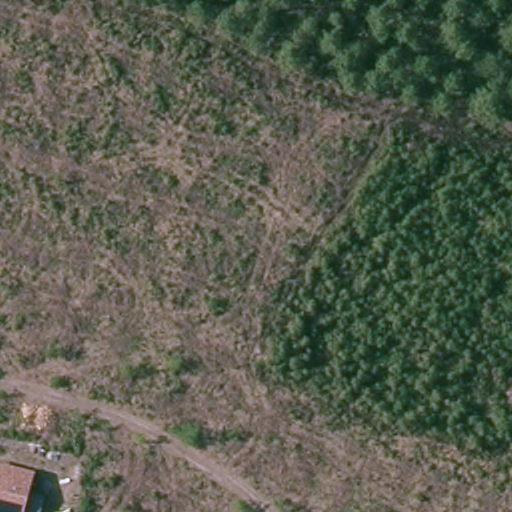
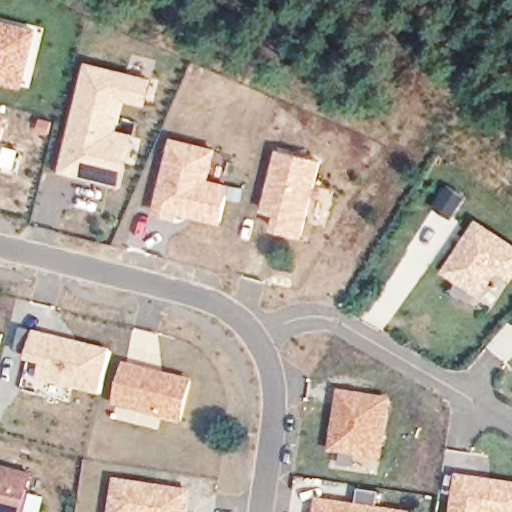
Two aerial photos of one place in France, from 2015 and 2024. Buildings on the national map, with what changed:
new [(39,28),(24,89),(0,83),(0,18),(39,28)]
new [(156,79),(149,105),(127,99),(119,129),(136,133),(124,187),(61,172),(88,62),(156,79)]
new [(10,119),(0,159),(0,116),(10,119)]
new [(218,148),(212,180),(232,184),(225,224),(178,213),(176,218),(154,212),(172,137),(218,148)]
new [(323,159),(305,236),(274,228),(278,215),(264,212),(279,149),(323,159)]
new [(512,281),(500,272),(481,298),(442,272),(477,218),(512,241),(512,281)]
new [(113,350),(102,395),(38,380),(43,363),(27,359),(36,332),(113,350)]
new [(195,380),(184,422),(114,406),(127,362),(195,380)]
new [(393,398),(384,461),(330,453),(340,390),(393,398)]
unchanged [(33,478),(25,512),(0,512),(0,470),(33,478)]
new [(512,512),(452,512),(456,475),(512,482),(512,512)]
new [(191,512),(110,512),(114,479),(194,490),(191,512)]
new [(354,502),(357,488),(379,492),(377,506),(413,512),(314,512),(316,497),(354,502)]

